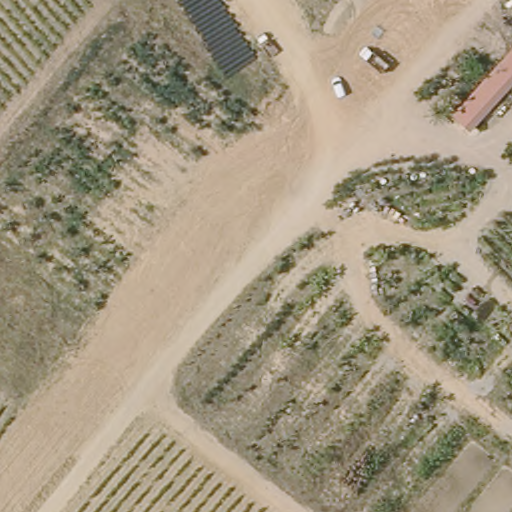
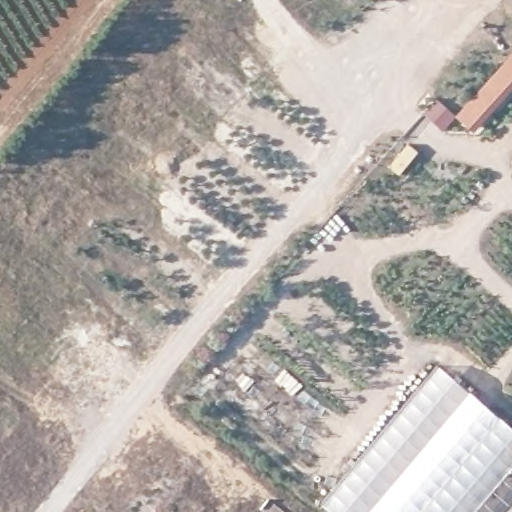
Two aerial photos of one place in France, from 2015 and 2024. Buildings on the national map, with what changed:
unchanged [(452,116),(512,47),(512,88),(472,133),(452,116)]
unchanged [(433,100),(452,116),(440,130),(422,114),(433,100)]
new [(512,428),(512,463),(492,488),(472,512),(329,512),(318,503),(436,364),(512,428)]
new [(510,465),(512,466),(512,512),(472,512),(492,488),(510,465)]

